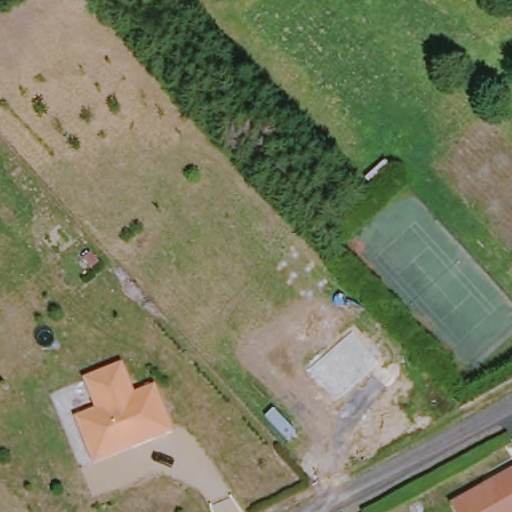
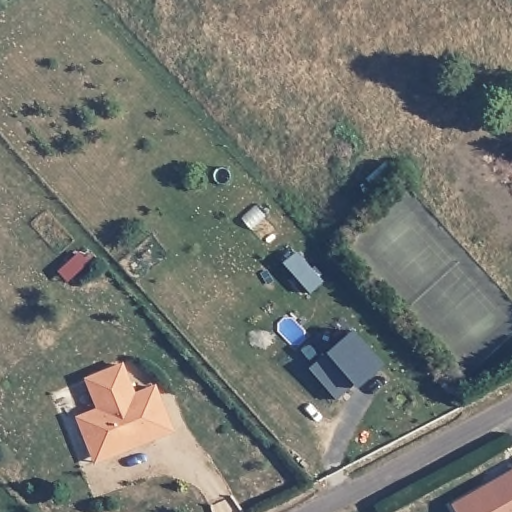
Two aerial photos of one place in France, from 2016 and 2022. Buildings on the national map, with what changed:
new [(309,370),(328,353),(354,330),(384,366),(356,390),(353,386),(337,401),(309,370)]
unchanged [(123,366),(135,395),(154,388),(170,430),(90,462),(72,417),(92,406),(82,381),(123,366)]
unchanged [(512,469),(512,512),(455,512),(450,502),(512,469)]

